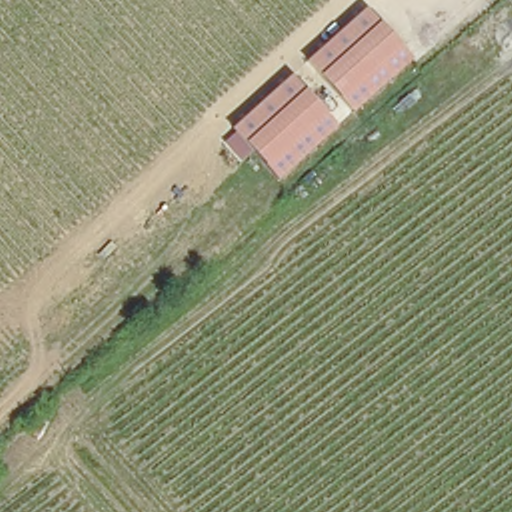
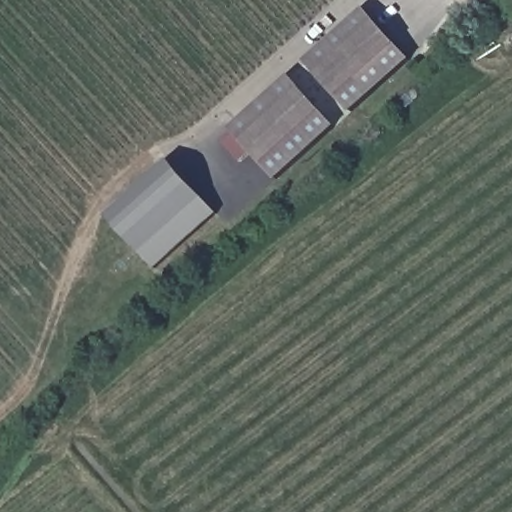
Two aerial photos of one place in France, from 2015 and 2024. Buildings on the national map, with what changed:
unchanged [(352,114),(305,61),(365,7),(412,59),(352,114)]
unchanged [(278,181),(231,130),(290,76),(336,128),(278,181)]
new [(155,269),(142,254),(110,214),(170,160),(204,199),(219,214),(155,269)]

